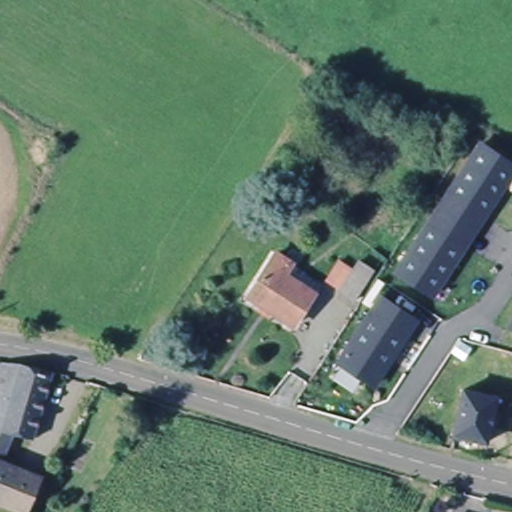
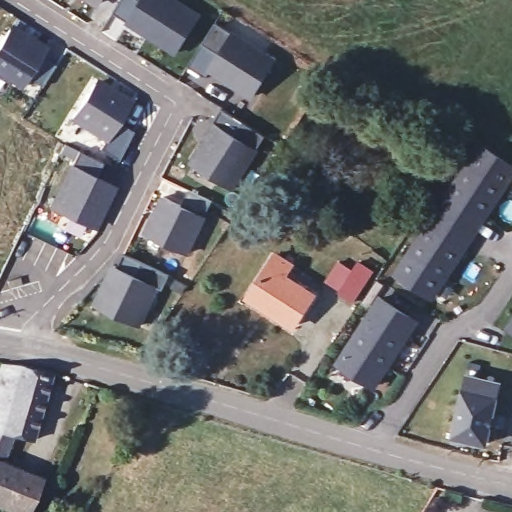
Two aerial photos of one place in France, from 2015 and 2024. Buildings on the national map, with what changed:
new [(100,4),(94,0),(102,0),(100,4)]
new [(127,19),(116,12),(123,0),(178,0),(200,12),(177,53),(127,21),(127,19)]
new [(216,22),(232,32),(275,58),(249,97),(207,69),(204,75),(189,65),(216,22)]
new [(45,46),(20,85),(0,71),(0,44),(11,25),(45,46)]
new [(72,117),(96,79),(130,101),(117,122),(106,140),(72,117)]
new [(214,122),(222,110),(265,136),(258,149),(234,190),(190,162),(214,122)]
new [(117,121),(134,132),(119,161),(100,150),(106,140),(117,121)]
new [(72,165),(75,157),(60,152),(64,145),(79,151),(101,163),(95,176),(116,187),(95,230),(49,207),(69,165),(72,165)]
unchanged [(435,297),(398,274),(482,146),(512,165),(512,178),(486,218),(466,248),(435,297)]
new [(160,217),(156,215),(165,197),(182,206),(190,190),(213,201),(187,254),(151,236),(160,217)]
new [(111,263),(118,266),(124,254),(169,275),(162,288),(160,287),(141,327),(94,304),(111,263)]
unchanged [(271,260),(287,270),(280,282),(310,301),(290,332),(244,302),(271,260)]
unchanged [(350,307),(335,297),(354,267),(369,277),(350,307)]
unchanged [(340,364),(382,299),(413,319),(418,322),(408,337),(376,387),(340,364)]
unchanged [(510,327),(512,324),(512,329),(510,327)]
unchanged [(34,440),(14,435),(2,462),(41,477),(29,512),(20,512),(0,504),(0,373),(2,364),(20,366),(53,373),(34,440)]
unchanged [(491,442),(459,434),(468,388),(502,396),(491,442)]

